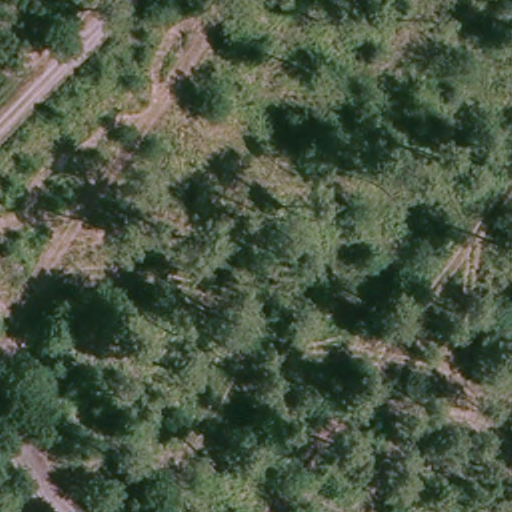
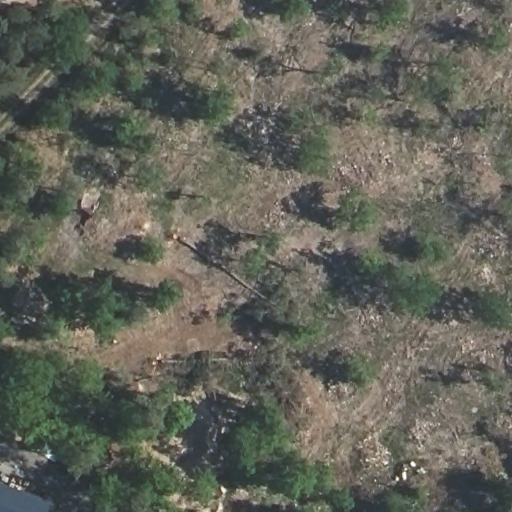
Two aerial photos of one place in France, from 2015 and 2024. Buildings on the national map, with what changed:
new [(49,503),(45,512),(0,512),(0,485),(49,503)]

